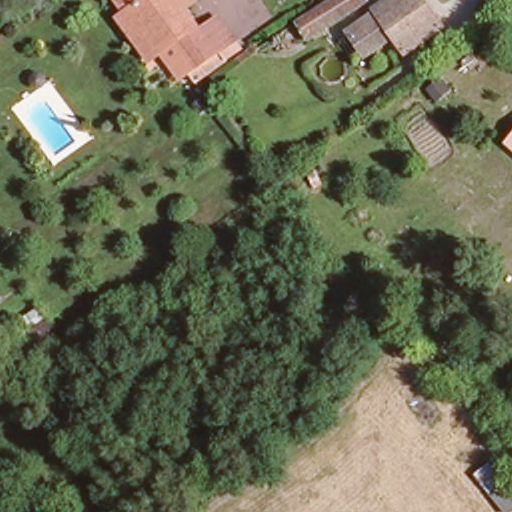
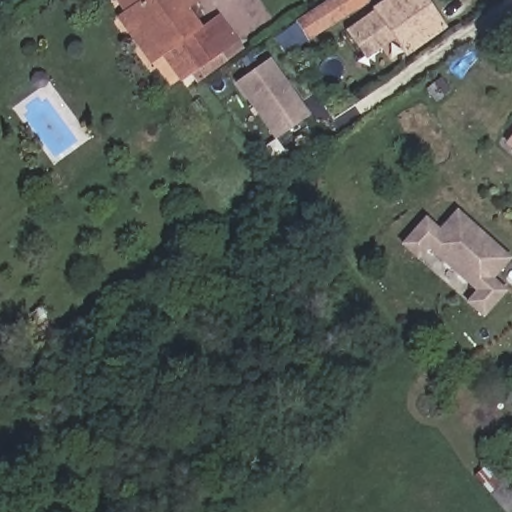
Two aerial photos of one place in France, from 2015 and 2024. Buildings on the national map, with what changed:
unchanged [(171,72),(158,45),(145,53),(133,33),(118,7),(124,3),(126,2),(125,0),(192,0),(183,5),(195,25),(216,13),(230,37),(237,49),(221,59),(198,71),(192,59),(171,72)]
unchanged [(308,37),(295,19),(323,0),(360,0),(308,37)]
unchanged [(445,26),(407,53),(406,51),(404,48),(396,36),(377,49),(361,46),(351,32),(379,12),(377,9),(389,0),(426,0),(445,26)]
new [(275,140),(234,82),(271,59),(310,116),(275,140)]
unchanged [(512,135),(512,147),(506,143),(512,135)]
new [(483,319),(464,303),(474,292),(428,250),(418,261),(400,245),(425,217),(439,229),(457,209),(511,258),(493,279),(506,290),(483,319)]
unchanged [(492,460),(512,485),(512,509),(509,512),(505,512),(474,473),(492,460)]

